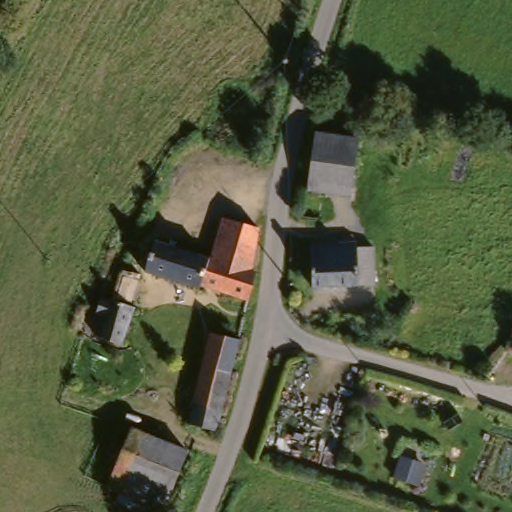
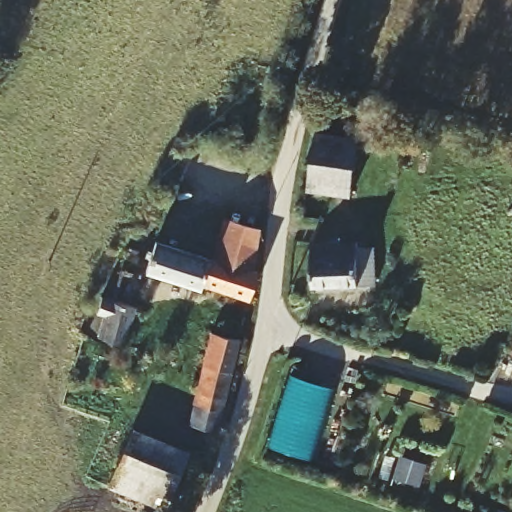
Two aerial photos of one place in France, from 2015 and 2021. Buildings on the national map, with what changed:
unchanged [(348,200),(306,191),(317,133),(356,138),(348,200)]
unchanged [(261,228),(252,267),(211,256),(221,215),(261,228)]
unchanged [(318,236),(363,248),(361,252),(378,258),(367,296),(307,278),(318,236)]
unchanged [(239,309),(228,305),(231,293),(206,281),(201,287),(143,268),(154,237),(251,270),(239,309)]
unchanged [(143,291),(118,359),(92,352),(99,331),(90,328),(96,313),(107,315),(118,282),(143,291)]
unchanged [(213,462),(183,453),(206,368),(234,375),(213,462)]
unchanged [(128,438),(183,463),(167,502),(111,476),(128,438)]

